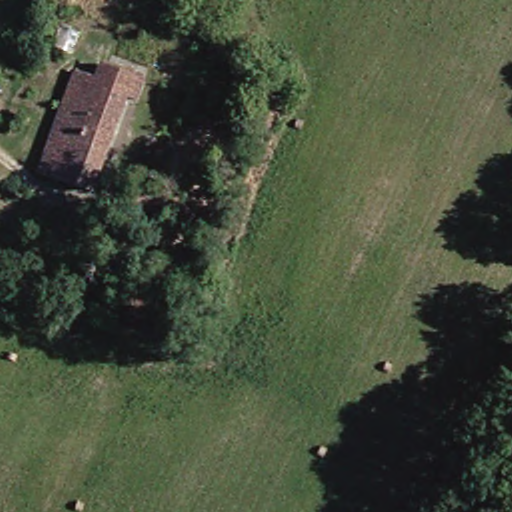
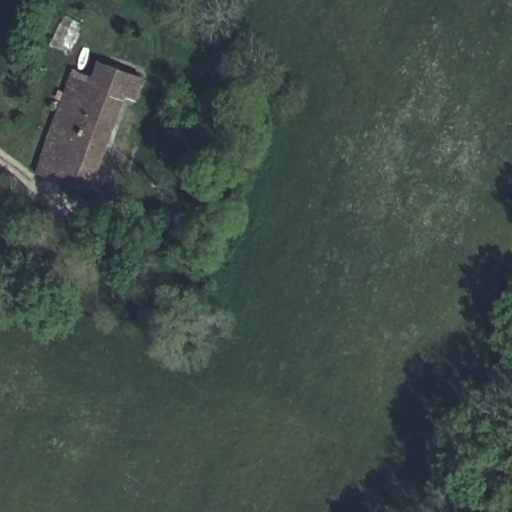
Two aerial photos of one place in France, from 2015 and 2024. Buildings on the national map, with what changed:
unchanged [(81,69),(107,79),(114,63),(149,79),(139,102),(131,98),(92,190),(40,167),(81,69)]

